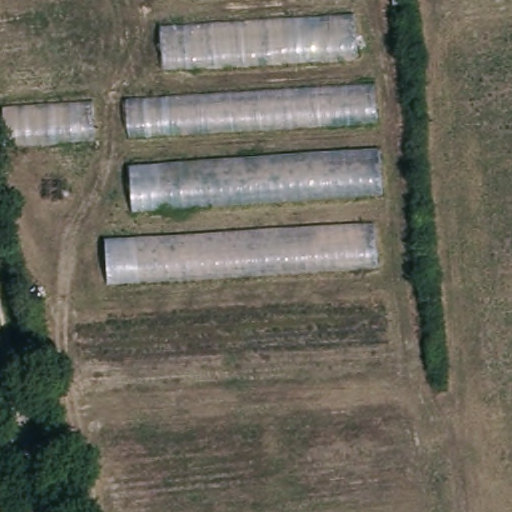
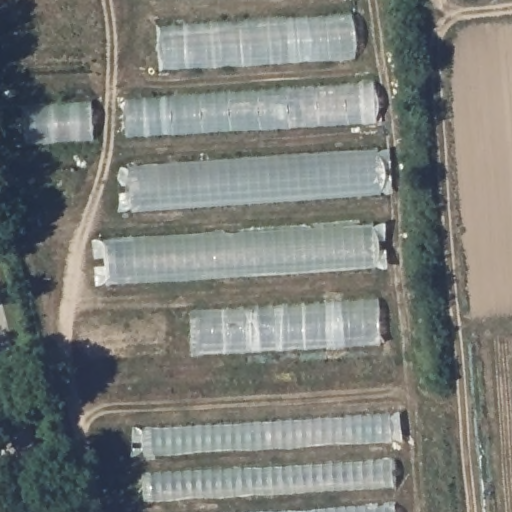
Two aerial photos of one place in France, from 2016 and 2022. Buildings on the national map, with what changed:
unchanged [(376,76),(376,123),(0,151),(0,100),(162,93),(154,0),(352,0),(356,78),(376,76)]
unchanged [(387,199),(134,217),(130,167),(384,151),(387,199)]
unchanged [(105,242),(373,226),(378,273),(108,287),(105,242)]
new [(379,300),(382,345),(194,357),(190,311),(379,300)]
new [(389,415),(396,512),(146,512),(142,428),(389,415)]

